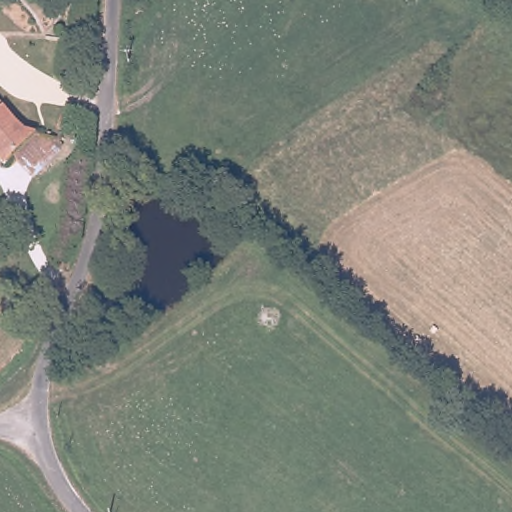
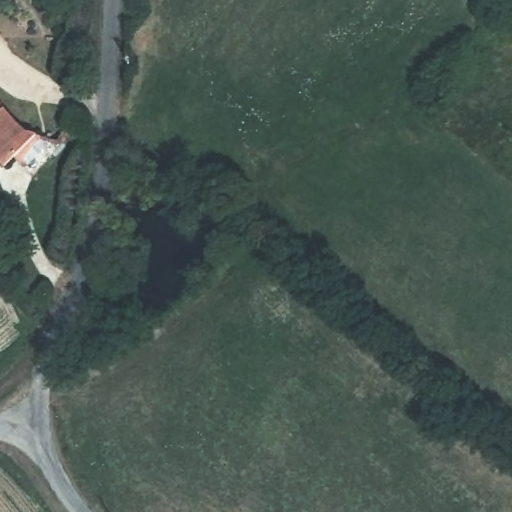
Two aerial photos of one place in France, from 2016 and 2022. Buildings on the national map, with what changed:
unchanged [(52,144),(27,172),(17,161),(9,168),(0,157),(0,103),(26,132),(52,144)]

